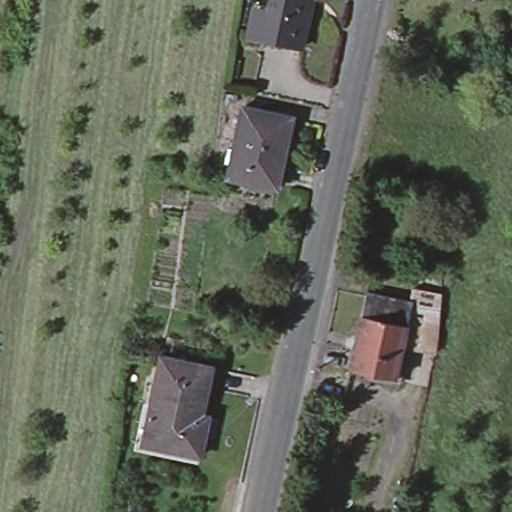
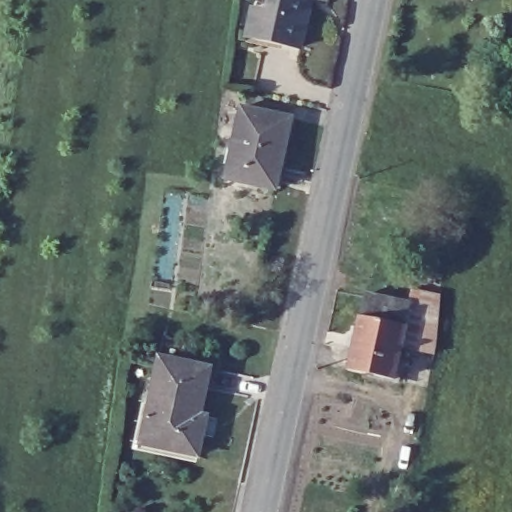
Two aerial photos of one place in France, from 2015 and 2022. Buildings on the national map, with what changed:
unchanged [(267,35),(253,33),(260,0),(316,0),(306,44),(267,35)]
unchanged [(243,105),(291,116),(276,188),(227,177),(243,105)]
unchanged [(346,366),(359,312),(362,290),(406,299),(410,285),(440,291),(437,342),(435,349),(399,340),(392,375),(346,366)]
unchanged [(146,425),(160,354),(189,359),(177,446),(144,439),(143,439),(146,425)]
unchanged [(189,359),(210,364),(200,411),(207,413),(199,451),(177,447),(177,446),(189,359)]

